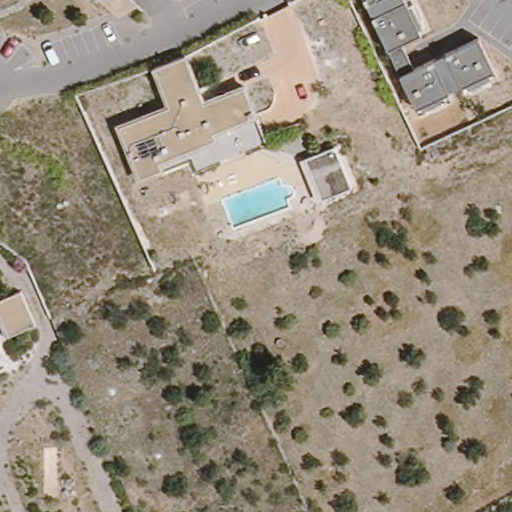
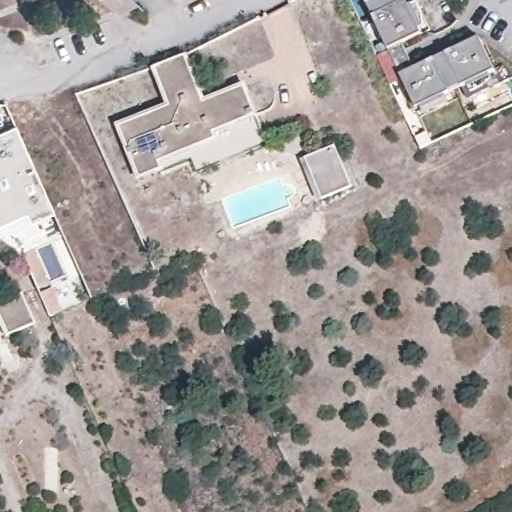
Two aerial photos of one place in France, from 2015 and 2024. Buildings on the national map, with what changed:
unchanged [(361,0),(405,0),(421,35),(384,49),(361,0)]
unchanged [(399,77),(474,38),(493,71),(487,74),(490,79),(466,90),(463,85),(439,97),(443,102),(422,111),(419,105),(414,107),(399,77)]
unchanged [(116,129),(165,107),(150,71),(186,55),(204,101),(242,85),(256,117),(215,136),(217,142),(161,166),(162,171),(137,179),(116,129)]
new [(17,129),(56,215),(32,226),(28,217),(0,229),(0,136),(17,129)]
unchanged [(299,161),(336,145),(351,189),(315,202),(299,161)]
unchanged [(0,328),(0,300),(20,291),(33,323),(3,336),(0,328)]

